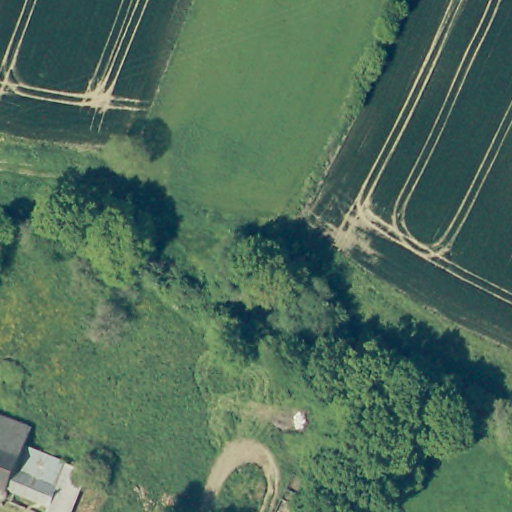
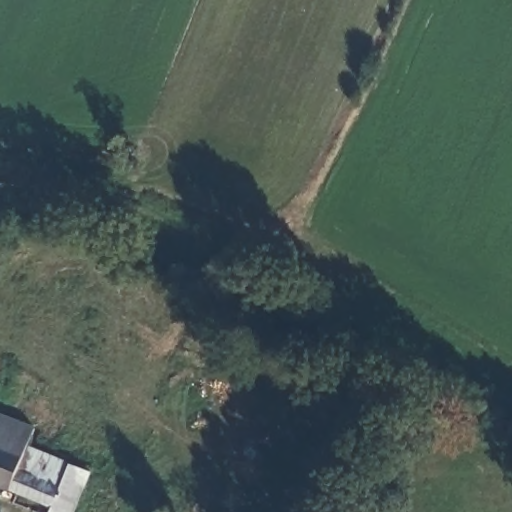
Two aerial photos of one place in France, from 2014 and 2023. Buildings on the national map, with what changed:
unchanged [(24,445),(14,469),(57,491),(49,507),(0,484),(0,416),(30,429),(24,445)]
unchanged [(69,467),(57,491),(14,469),(24,445),(69,467)]
unchanged [(69,467),(91,477),(75,512),(46,512),(49,507),(57,491),(69,467)]

